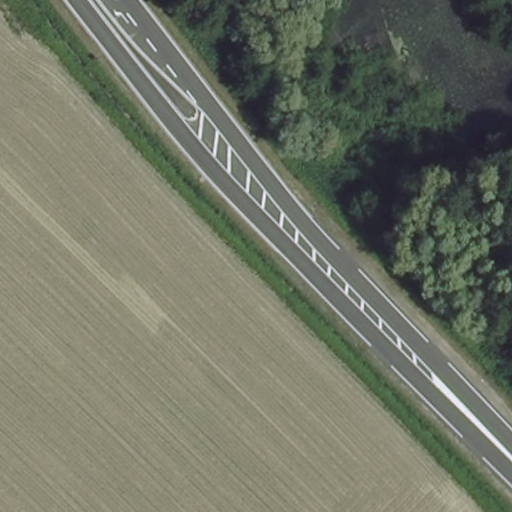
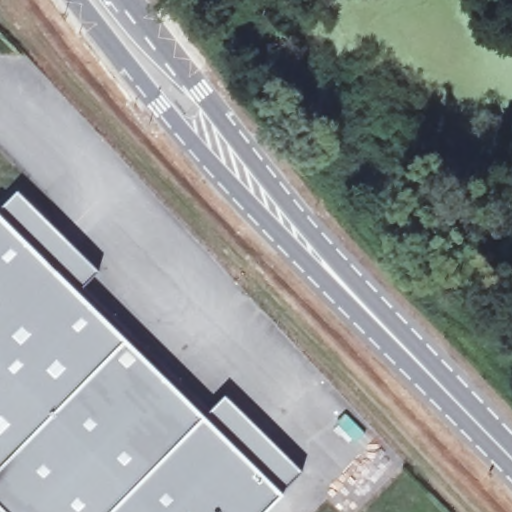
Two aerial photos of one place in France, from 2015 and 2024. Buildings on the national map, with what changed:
new [(96,272),(77,293),(205,417),(225,397),(300,473),(280,493),(283,496),(267,512),(0,512),(0,209),(18,194),(96,272)]

